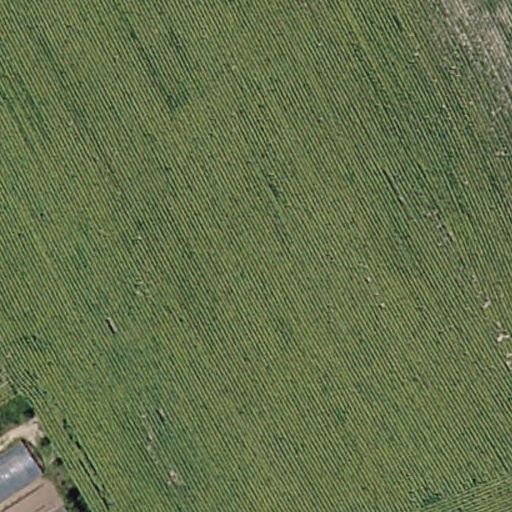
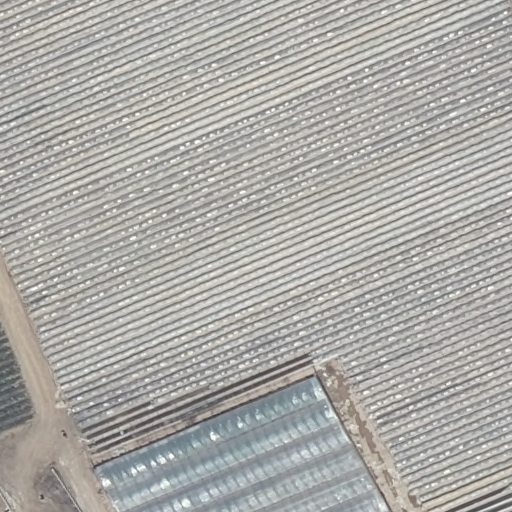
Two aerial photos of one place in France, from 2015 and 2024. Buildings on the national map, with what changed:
new [(95,470),(320,375),(395,512),(118,512),(95,470)]

